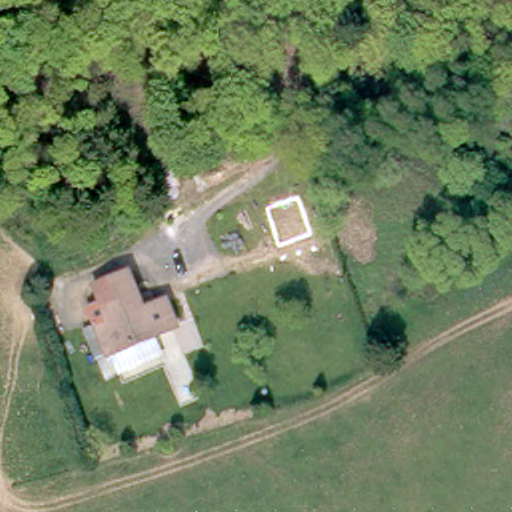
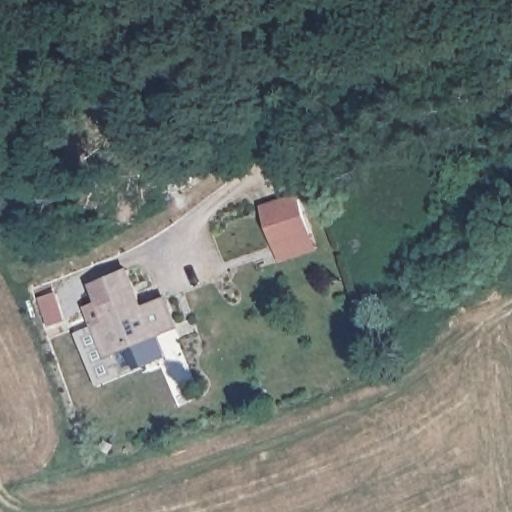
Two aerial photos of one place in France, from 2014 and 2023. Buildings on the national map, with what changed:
new [(318,249),(280,261),(262,205),(299,194),(318,249)]
unchanged [(160,337),(154,325),(108,344),(97,315),(108,310),(93,274),(129,260),(144,296),(166,288),(177,316),(173,317),(178,330),(160,337)]

